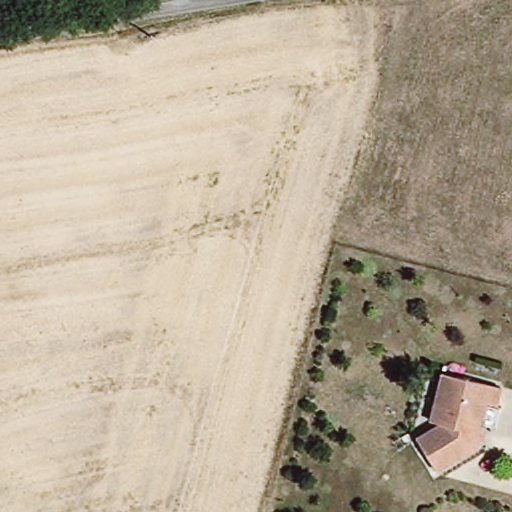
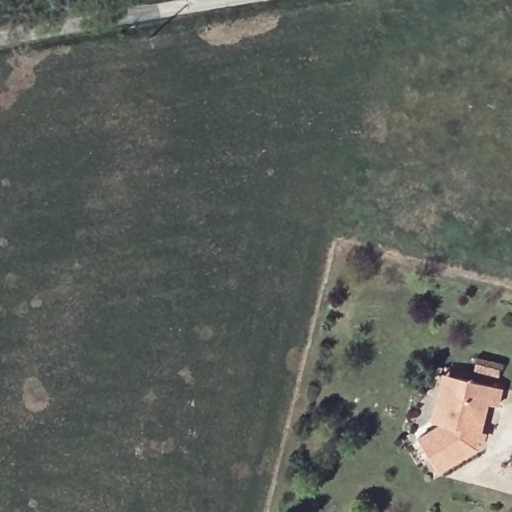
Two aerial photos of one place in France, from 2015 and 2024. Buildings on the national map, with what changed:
unchanged [(497,405),(486,404),(477,449),(438,472),(418,440),(441,425),(431,422),(441,374),(456,378),(502,389),(497,405)]

